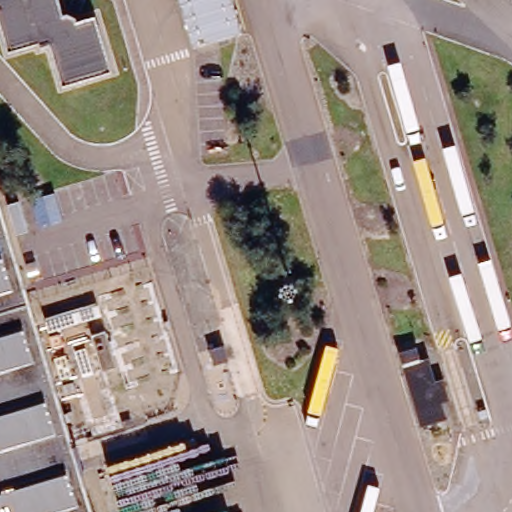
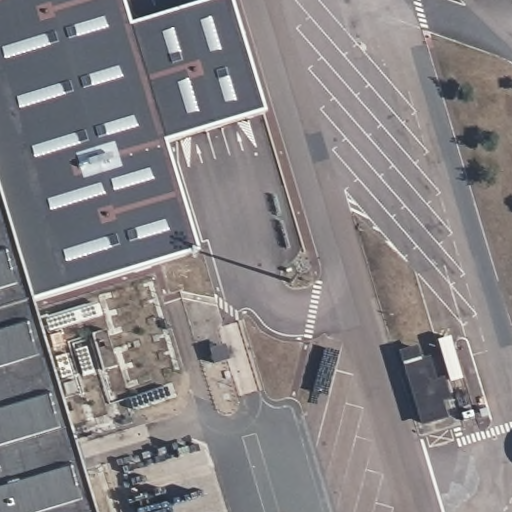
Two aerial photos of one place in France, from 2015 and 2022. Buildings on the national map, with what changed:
demolished [(67,14),(75,17),(77,23),(95,18),(111,71),(62,86),(50,45),(40,48),(39,43),(8,53),(0,25),(0,0),(57,0),(62,16),(67,14)]
new [(234,15),(267,123),(164,156),(195,261),(37,307),(97,512),(0,512),(0,0),(124,0),(141,40),(234,15)]
demolished [(194,47),(179,0),(233,0),(243,31),(194,47)]
demolished [(93,512),(0,512),(0,207),(73,447),(93,512)]
unchanged [(115,367),(102,371),(92,335),(105,332),(115,367)]
unchanged [(210,350),(220,346),(225,363),(213,365),(210,350)]
unchanged [(415,363),(424,360),(430,384),(440,381),(445,401),(437,403),(442,419),(420,426),(400,354),(412,350),(415,363)]

